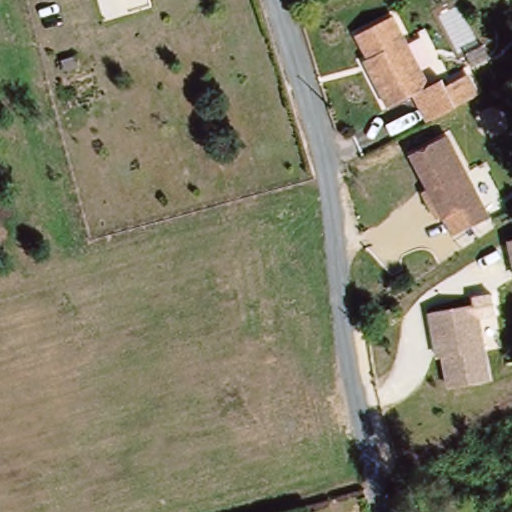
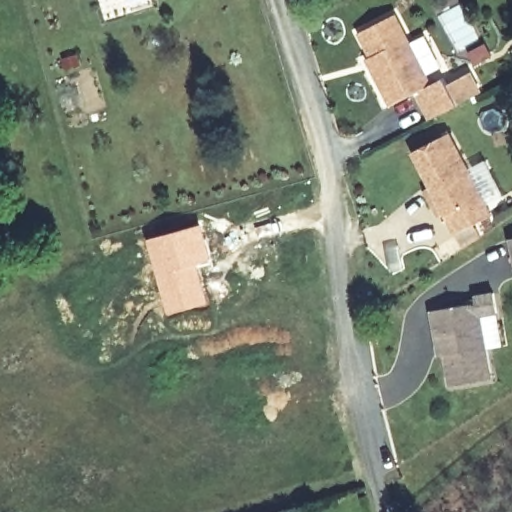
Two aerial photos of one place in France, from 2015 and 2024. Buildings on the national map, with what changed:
unchanged [(475,75),(483,92),(433,116),(420,89),(392,102),(375,65),(380,62),(363,28),(401,11),(433,82),(447,76),(452,85),(475,75)]
unchanged [(438,196),(417,150),(453,134),(491,216),(456,232),(446,212),(441,215),(433,199),(438,196)]
new [(201,222),(212,262),(199,265),(209,305),(167,316),(146,237),(201,222)]
unchanged [(512,276),(511,276),(503,237),(512,236),(512,276)]
unchanged [(432,308),(477,300),(491,368),(492,377),(474,380),(450,383),(446,353),(438,354),(437,344),(432,308)]

